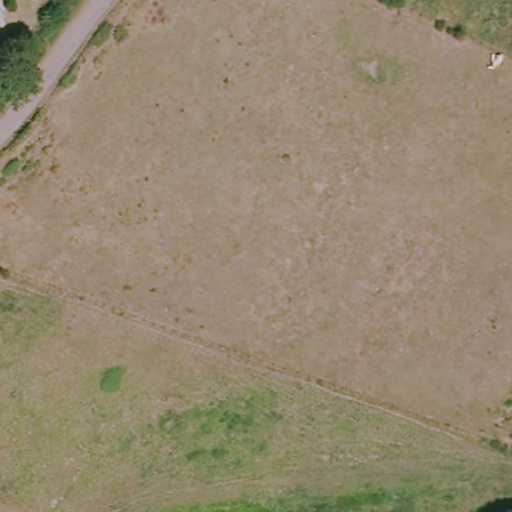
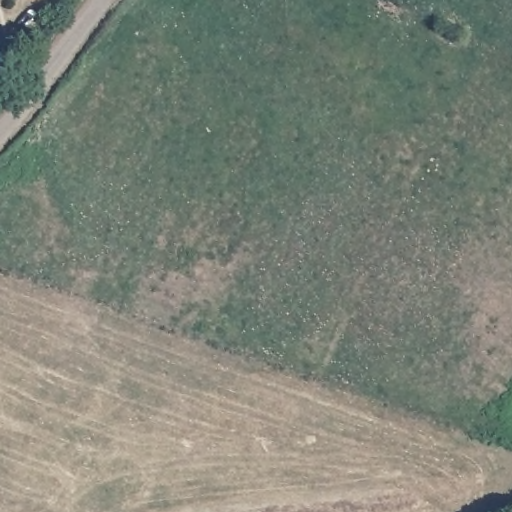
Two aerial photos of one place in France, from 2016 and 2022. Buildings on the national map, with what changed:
unchanged [(34,1),(32,0),(35,0),(34,1)]

